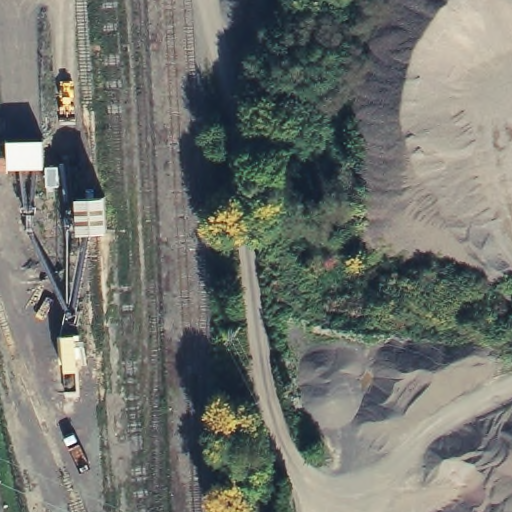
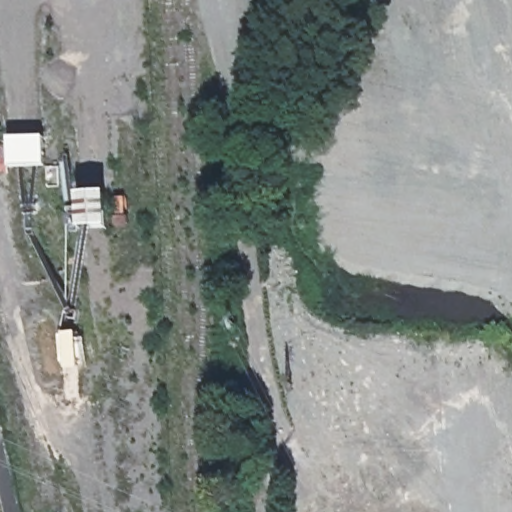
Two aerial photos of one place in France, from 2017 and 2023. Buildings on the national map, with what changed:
unchanged [(42,140),(43,167),(8,169),(7,141),(42,140)]
unchanged [(102,198),(105,232),(79,233),(77,199),(102,198)]

